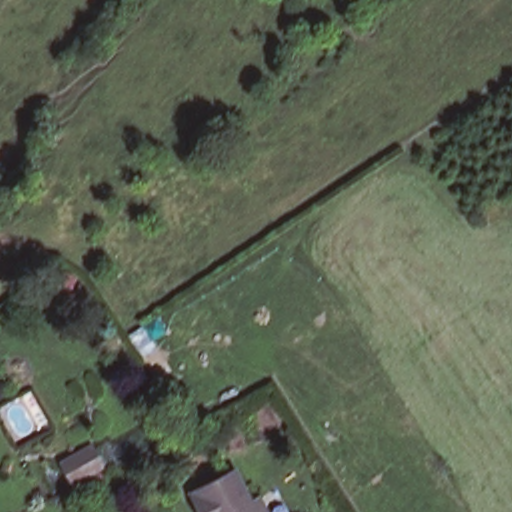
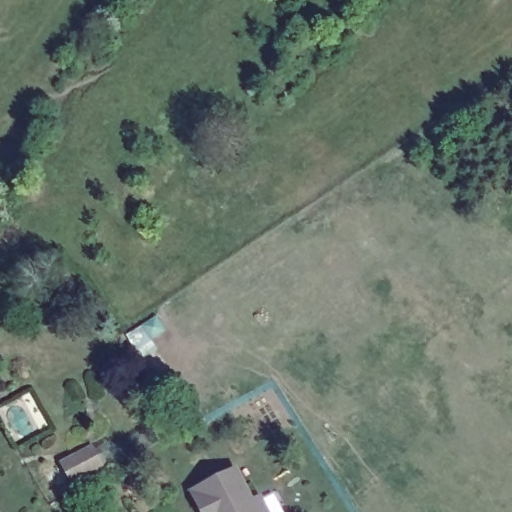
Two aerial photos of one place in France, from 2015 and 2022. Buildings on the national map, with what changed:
unchanged [(103,465),(75,480),(65,462),(93,447),(103,465)]
unchanged [(239,473),(255,502),(262,499),(268,512),(207,512),(198,495),(239,473)]

